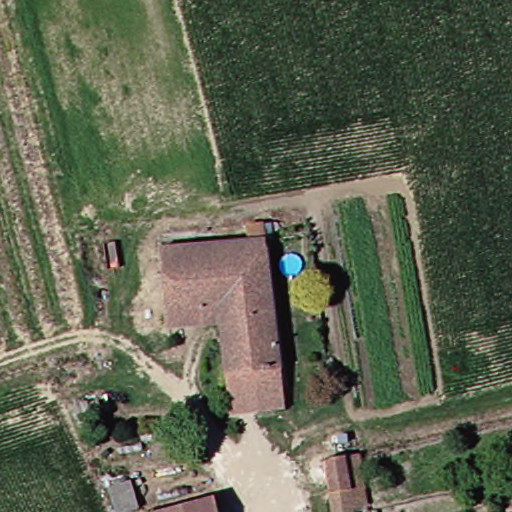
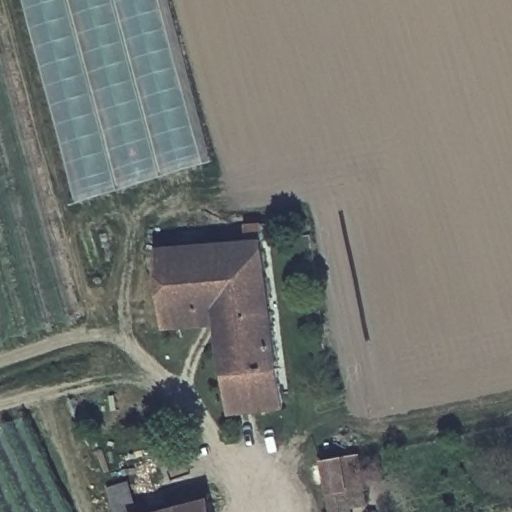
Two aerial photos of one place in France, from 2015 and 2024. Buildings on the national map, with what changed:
new [(75,204),(20,0),(171,0),(214,162),(75,204)]
unchanged [(277,407),(226,412),(216,326),(162,329),(156,249),(225,244),(224,226),(264,222),(277,407)]
unchanged [(361,512),(329,512),(322,462),(354,457),(361,512)]
unchanged [(201,506),(203,512),(181,512),(201,506)]

